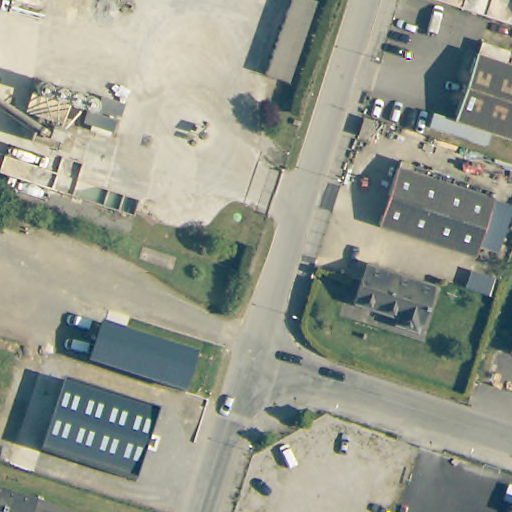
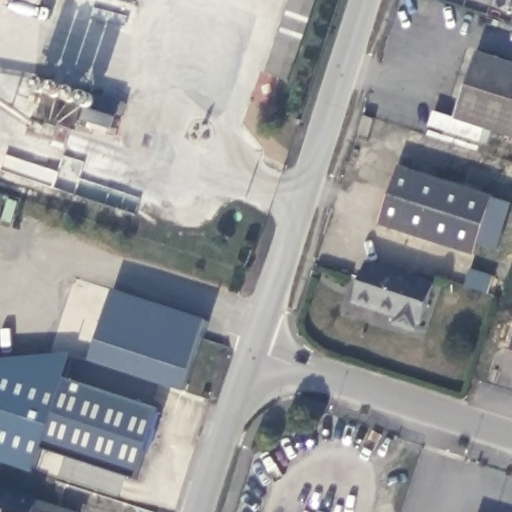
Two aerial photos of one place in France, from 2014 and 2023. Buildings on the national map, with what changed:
unchanged [(314,0),(318,1),(290,84),(268,75),(294,0),(314,0)]
unchanged [(479,55),(512,65),(512,134),(460,119),(479,55)]
unchanged [(99,91),(94,110),(33,90),(40,71),(99,91)]
unchanged [(84,113),(109,121),(104,134),(80,125),(84,113)]
unchanged [(31,115),(69,129),(61,155),(22,140),(31,115)]
unchanged [(397,165),(495,195),(476,254),(447,244),(380,221),(397,165)]
unchanged [(366,263),(434,281),(422,324),(419,323),(417,330),(396,323),(398,316),(355,302),(366,263)]
new [(98,323),(110,288),(209,322),(198,356),(98,323)]
unchanged [(502,353),(512,322),(512,357),(502,353)]
unchanged [(98,323),(198,356),(185,394),(85,360),(98,323)]
new [(0,360),(70,353),(63,380),(41,451),(32,475),(0,464),(0,360)]
unchanged [(137,482),(41,451),(63,380),(160,412),(137,482)]
unchanged [(0,491),(69,512),(0,512),(0,491)]

